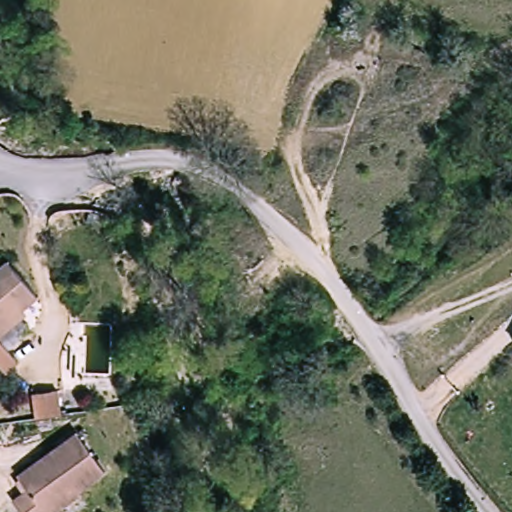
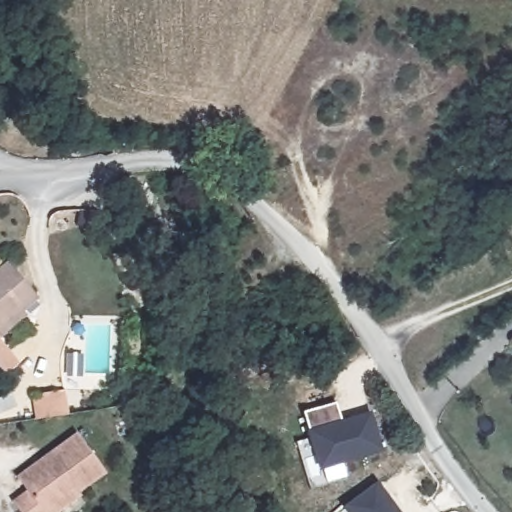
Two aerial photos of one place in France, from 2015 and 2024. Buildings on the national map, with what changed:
unchanged [(21,362),(4,374),(0,369),(0,268),(22,252),(48,290),(25,306),(30,313),(1,332),(21,362)]
unchanged [(40,421),(37,402),(63,398),(66,417),(40,421)]
new [(304,412),(336,402),(340,417),(333,420),(335,425),(370,414),(380,450),(320,469),(304,412)]
unchanged [(31,487),(22,475),(78,433),(106,469),(81,490),(54,512),(22,512),(14,500),(31,487)]
new [(379,482),(401,512),(351,512),(347,507),(379,482)]

